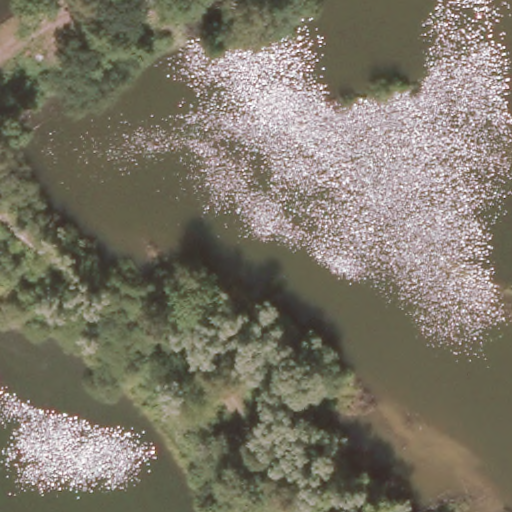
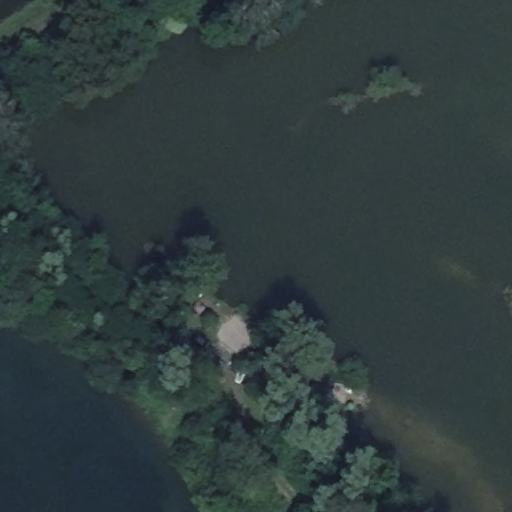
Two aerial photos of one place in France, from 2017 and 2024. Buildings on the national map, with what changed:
unchanged [(283,348),(296,357),(281,378),(268,369),(283,348)]

